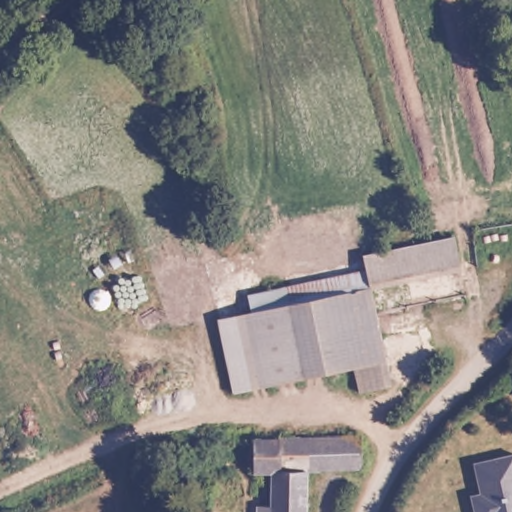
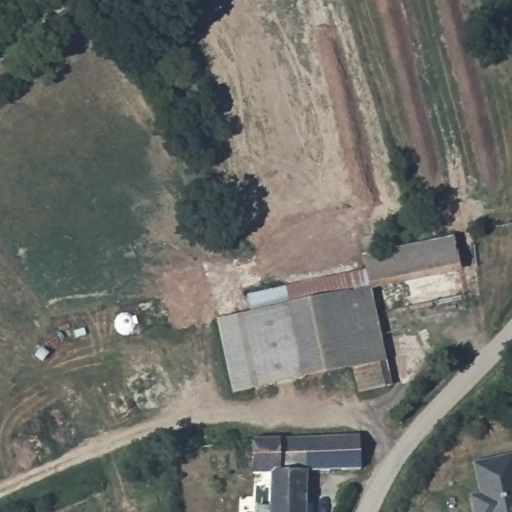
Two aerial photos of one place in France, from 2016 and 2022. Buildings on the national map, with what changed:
unchanged [(365,256),(454,238),(462,271),(373,289),(372,286),(370,287),(367,270),(365,256)]
unchanged [(252,313),(249,295),(367,270),(370,287),(333,295),(252,313)]
unchanged [(252,313),(333,295),(370,287),(372,286),(373,289),(382,335),(387,361),(355,368),(236,392),(220,320),(252,313)]
unchanged [(389,333),(400,383),(360,392),(355,368),(387,361),(382,335),(389,333)]
unchanged [(256,496),(274,496),(273,470),(253,470),(249,438),(351,434),(354,463),(309,466),(309,512),(256,512),(256,496)]
unchanged [(474,489),(484,486),(478,456),(512,449),(512,512),(479,512),(474,489)]

